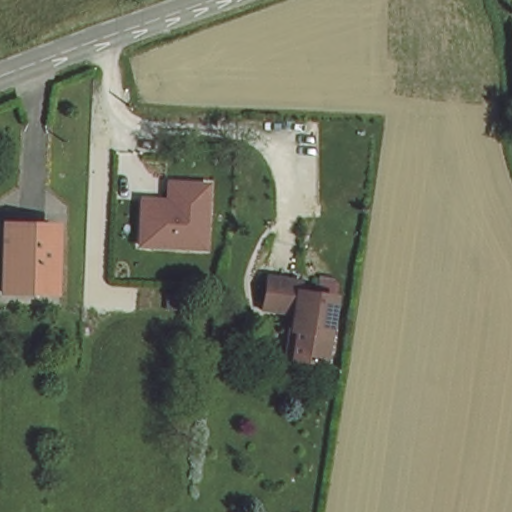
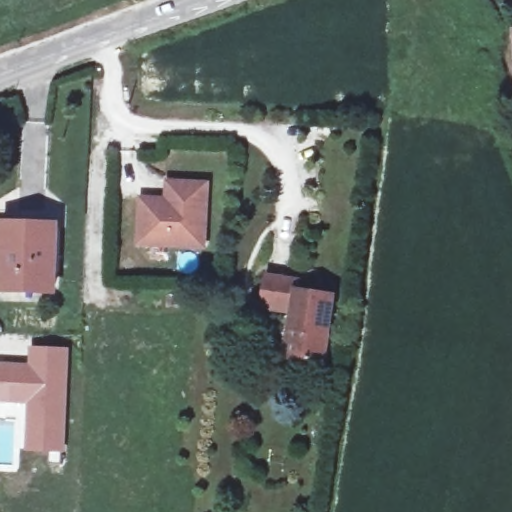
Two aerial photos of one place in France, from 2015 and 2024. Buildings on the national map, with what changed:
unchanged [(210,183),(206,250),(138,245),(142,197),(164,197),(167,181),(210,183)]
unchanged [(1,293),(2,253),(0,253),(0,228),(3,229),(54,230),(52,296),(1,293)]
unchanged [(322,362),(290,357),(294,329),(289,328),(292,310),(261,305),(265,275),(298,280),(296,290),(332,296),(322,362)]
new [(29,344),(70,346),(65,453),(23,450),(26,405),(0,403),(0,361),(28,363),(29,344)]

